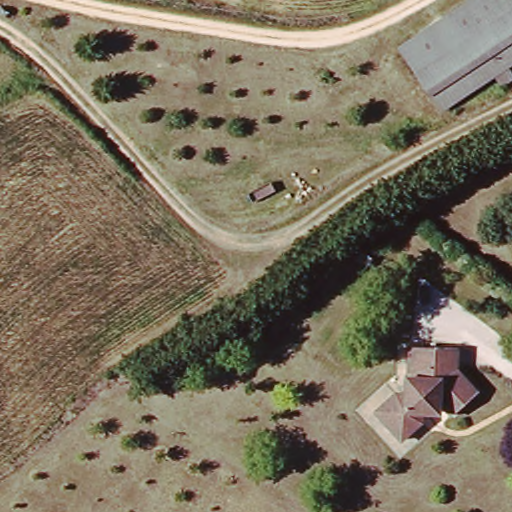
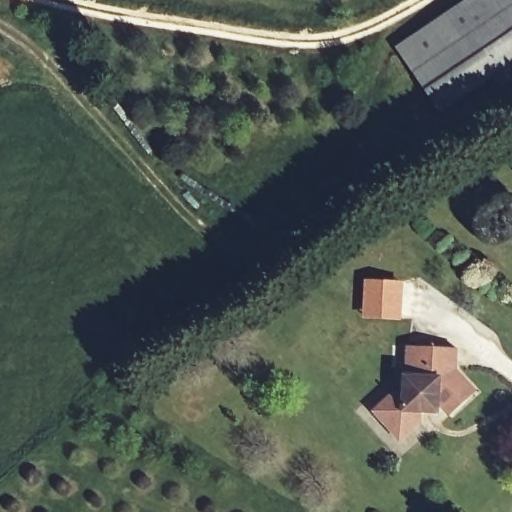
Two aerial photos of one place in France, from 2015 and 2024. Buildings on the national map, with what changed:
unchanged [(512,0),(512,60),(438,108),(397,44),(463,0),(512,0)]
new [(363,278),(404,280),(401,320),(361,319),(363,278)]
unchanged [(369,414),(388,395),(397,395),(397,377),(401,375),(401,348),(450,350),(452,371),(470,392),(445,415),(433,404),(430,414),(415,413),(415,422),(395,440),(369,414)]

